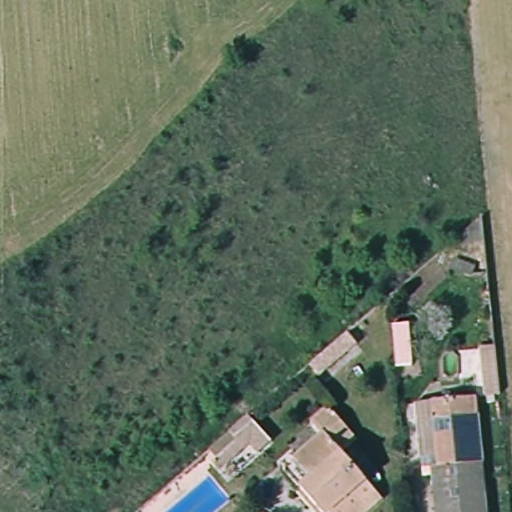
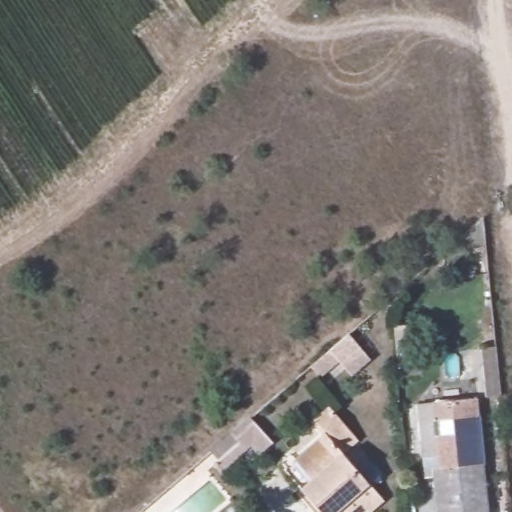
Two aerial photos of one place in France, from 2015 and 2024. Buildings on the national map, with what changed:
unchanged [(394,367),(394,326),(411,324),(414,367),(394,367)]
unchanged [(319,375),(312,366),(348,332),(356,345),(319,375)]
unchanged [(496,346),(500,394),(488,396),(480,348),(496,346)]
unchanged [(441,462),(436,396),(474,394),(485,512),(434,512),(431,463),(441,462)]
unchanged [(304,460),(334,434),(324,421),(341,406),(380,451),(363,466),(387,494),(368,512),(329,512),(321,503),(309,489),(319,480),(304,460)]
unchanged [(249,444),(220,470),(213,462),(217,457),(210,449),(249,416),(272,441),(256,453),(249,444)]

